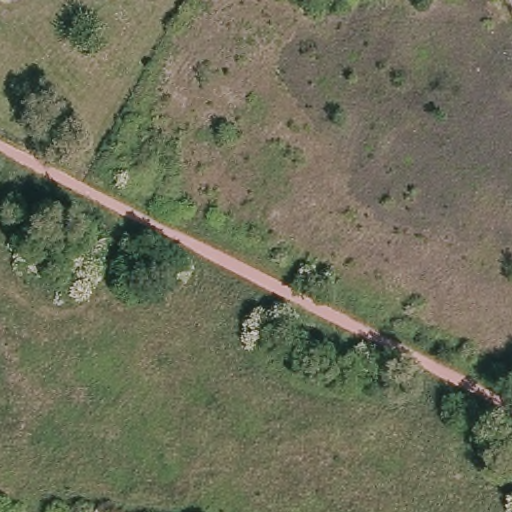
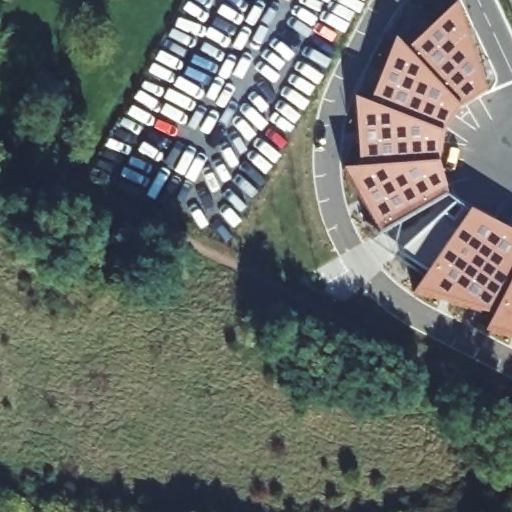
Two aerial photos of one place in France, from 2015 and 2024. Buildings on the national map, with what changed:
new [(485,331),(493,316),(415,291),(429,272),(378,237),(342,171),(358,171),(353,100),(369,105),(395,39),(406,52),(456,3),(487,95),(457,109),(441,137),(438,164),(446,197),(512,232),(512,339),(485,331)]

